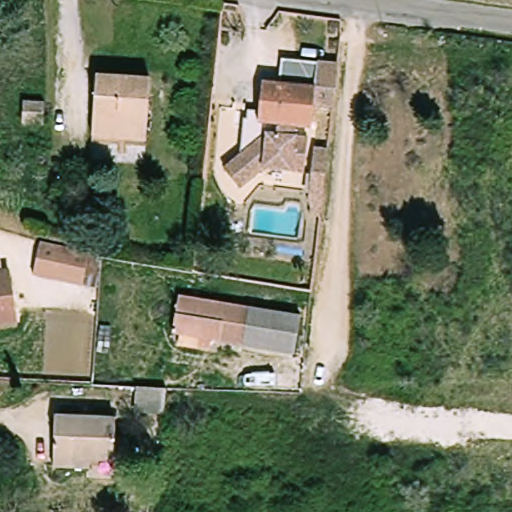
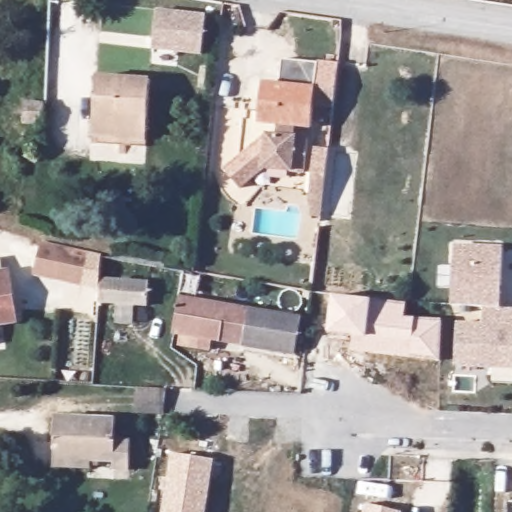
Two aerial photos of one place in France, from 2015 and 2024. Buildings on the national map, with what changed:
new [(201,55),(151,50),(156,9),(206,14),(201,55)]
unchanged [(311,115),(311,128),(286,126),(260,124),(261,89),(282,88),(283,60),(315,60),(337,60),(333,114),(311,115)]
unchanged [(90,135),(90,125),(95,77),(149,81),(146,118),(145,138),(90,135)]
unchanged [(25,123),(27,103),(48,105),(48,124),(25,123)]
unchanged [(273,132),(286,133),(286,126),(311,128),(311,136),(317,136),(317,146),(336,147),(327,216),(310,213),(314,174),(271,172),(245,190),(228,166),(273,132)]
unchanged [(99,257),(89,289),(39,276),(50,242),(99,257)]
new [(512,383),(494,382),(495,369),(456,367),(458,323),(485,324),(485,308),(452,306),(456,245),(504,247),(501,308),(512,309),(512,383)]
unchanged [(115,272),(163,280),(159,303),(111,295),(115,272)]
unchanged [(12,275),(15,326),(0,328),(0,276),(12,275)]
new [(371,300),(407,303),(405,317),(416,318),(442,319),(441,362),(353,353),(355,337),(330,334),(333,297),(371,300)]
unchanged [(249,346),(170,340),(172,299),(252,305),(249,346)]
unchanged [(307,308),(305,349),(249,346),(252,305),(307,308)]
unchanged [(165,412),(133,408),(137,381),(168,381),(165,412)]
unchanged [(51,466),(52,456),(58,413),(117,420),(115,440),(133,442),(129,474),(110,474),(110,462),(90,459),(88,471),(51,466)]
new [(207,512),(161,512),(171,453),(215,460),(207,512)]
new [(512,502),(512,512),(508,512),(508,502),(512,502)]
new [(365,512),(366,504),(399,512),(365,512)]

